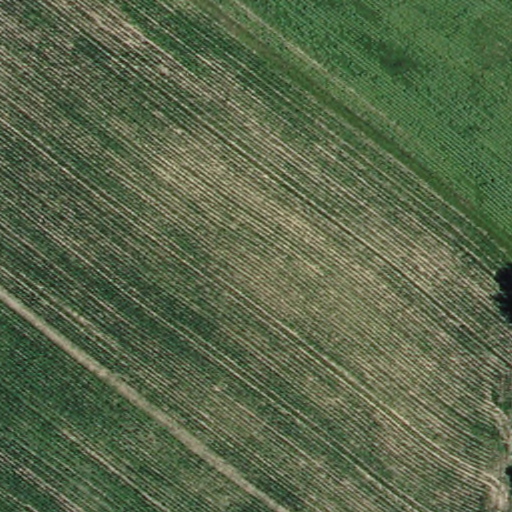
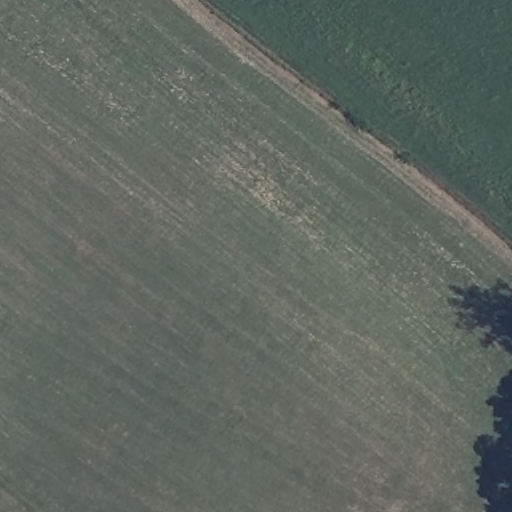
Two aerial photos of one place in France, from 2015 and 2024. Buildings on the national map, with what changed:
[]

